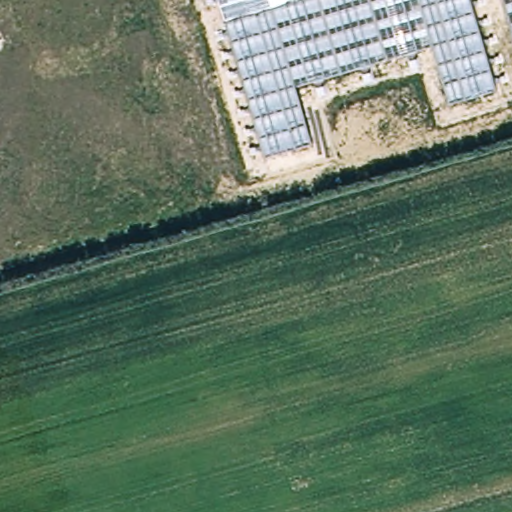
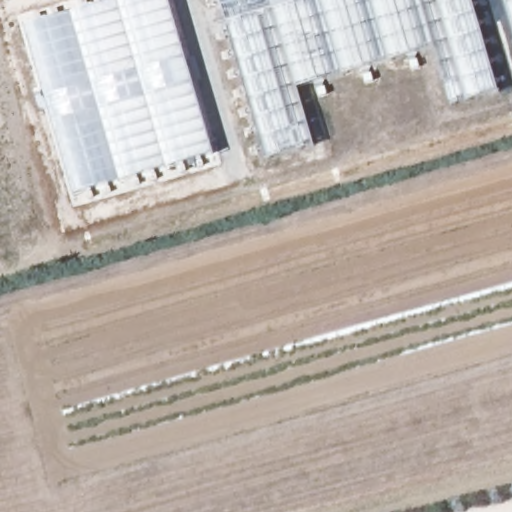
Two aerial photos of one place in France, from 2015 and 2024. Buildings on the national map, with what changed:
new [(114,0),(167,0),(213,155),(74,197),(24,26),(114,0)]
unchanged [(450,104),(435,45),(297,85),(313,144),(267,156),(229,23),(222,0),(472,0),(499,91),(450,104)]
unchanged [(512,0),(512,25),(504,0),(512,0)]

